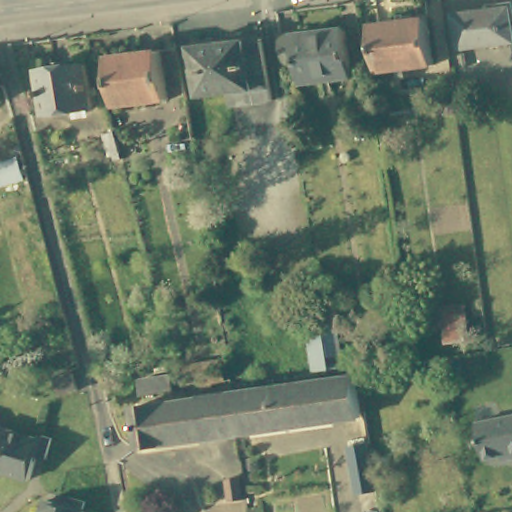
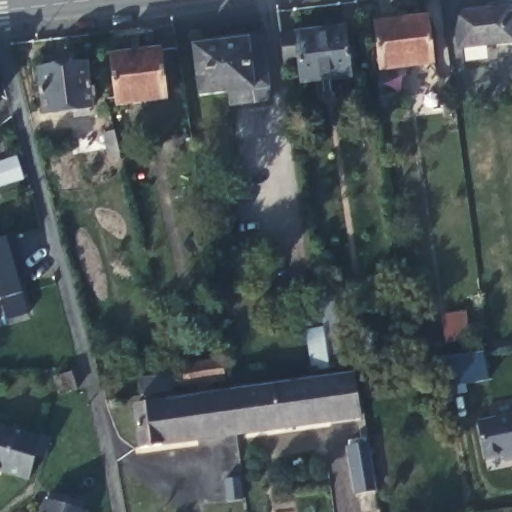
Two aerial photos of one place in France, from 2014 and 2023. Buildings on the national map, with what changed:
unchanged [(512,27),(512,38),(459,45),(454,11),(509,5),(512,27)]
unchanged [(427,15),(433,61),(381,68),(375,21),(427,15)]
unchanged [(345,25),(352,74),(302,80),(300,65),(285,66),(281,34),(345,25)]
unchanged [(200,42),(200,36),(255,30),(256,36),(263,35),(269,84),(201,94),(193,43),(200,42)]
unchanged [(162,48),(168,96),(118,103),(113,55),(162,48)]
unchanged [(86,61),(92,105),(45,112),(39,67),(86,61)]
unchanged [(114,129),(118,142),(122,156),(117,157),(115,152),(109,154),(107,146),(103,131),(114,129)]
unchanged [(18,165),(21,175),(0,181),(0,170),(18,165)]
new [(29,315),(4,320),(0,306),(0,243),(10,240),(21,292),(29,315)]
unchanged [(324,326),(331,365),(314,368),(309,330),(324,326)]
unchanged [(55,373),(71,368),(75,383),(59,388),(55,373)]
unchanged [(170,373),(173,388),(141,393),(138,378),(170,373)]
unchanged [(356,373),(363,414),(237,432),(231,391),(356,373)]
unchanged [(231,391),(237,432),(141,446),(135,406),(231,391)]
unchanged [(512,456),(487,460),(479,422),(512,415),(512,456)]
unchanged [(39,432),(40,427),(50,430),(45,451),(36,449),(30,473),(0,464),(0,421),(39,432)]
unchanged [(371,440),(377,486),(358,489),(351,442),(371,440)]
unchanged [(241,475),(244,497),(229,500),(226,477),(241,475)]
unchanged [(47,502),(57,505),(60,495),(70,497),(86,502),(83,511),(87,512),(45,512),(47,502)]

